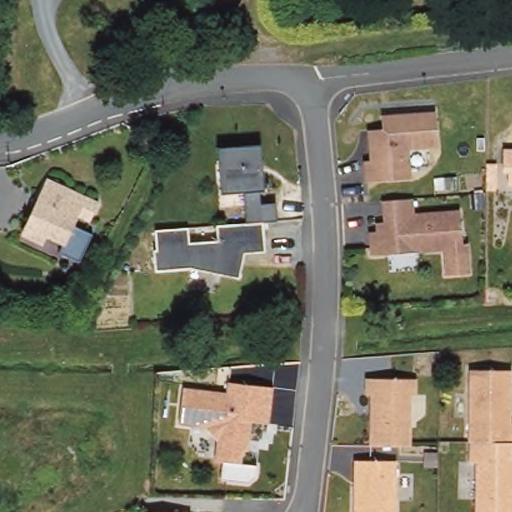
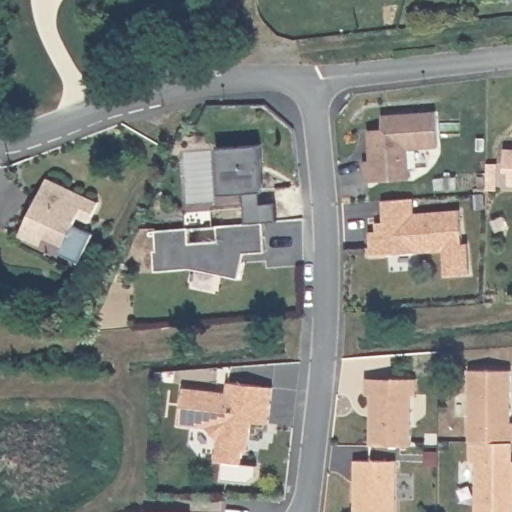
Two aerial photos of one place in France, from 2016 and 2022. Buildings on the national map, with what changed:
unchanged [(360,157),(366,157),(365,126),(379,125),(378,112),(432,108),(435,143),(405,145),(407,175),(362,178),(360,157)]
unchanged [(263,143),(265,164),(267,190),(262,190),(263,202),(278,201),(280,220),(265,221),(254,222),(249,223),(246,191),(226,193),(224,193),(221,163),(220,147),(263,143)]
unchanged [(505,175),(505,156),(512,156),(512,188),(510,188),(510,175),(505,175)]
unchanged [(96,205),(87,225),(75,220),(71,229),(90,237),(77,265),(56,256),(64,241),(47,234),(44,240),(22,230),(45,182),(96,205)]
unchanged [(410,200),(410,215),(456,211),(459,245),(465,244),(466,275),(442,277),(440,251),(367,257),(365,233),(373,233),(372,224),(380,223),(378,202),(410,200)]
unchanged [(170,228),(190,227),(191,242),(220,240),(220,225),(249,223),(254,222),(265,221),(267,251),(246,252),(241,278),(192,267),(157,270),(156,249),(159,249),(157,229),(170,228)]
unchanged [(507,424),(512,424),(512,444),(510,444),(466,443),(465,443),(466,371),(508,372),(507,424)]
unchanged [(413,375),(413,392),(408,392),(408,442),(408,443),(367,442),(368,391),(363,391),(363,374),(388,375),(406,375),(413,375)]
unchanged [(245,450),(244,465),(217,462),(220,442),(209,429),(181,426),(185,389),(229,394),(230,383),(275,388),(271,425),(254,423),(251,442),(250,451),(245,450)]
unchanged [(510,463),(512,463),(512,512),(472,512),(473,464),(466,464),(466,443),(510,444),(510,463)]
unchanged [(393,512),(351,512),(351,462),(393,462),(393,512)]

